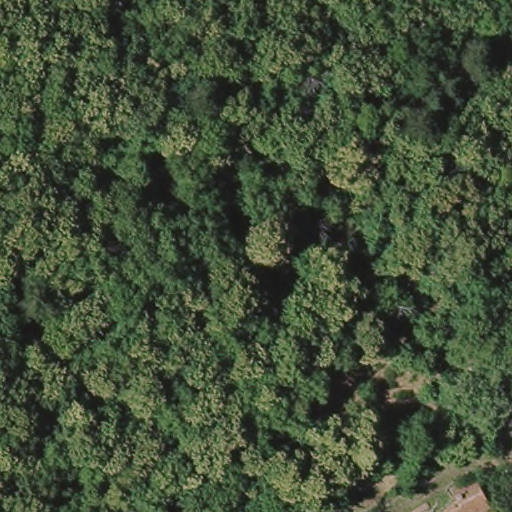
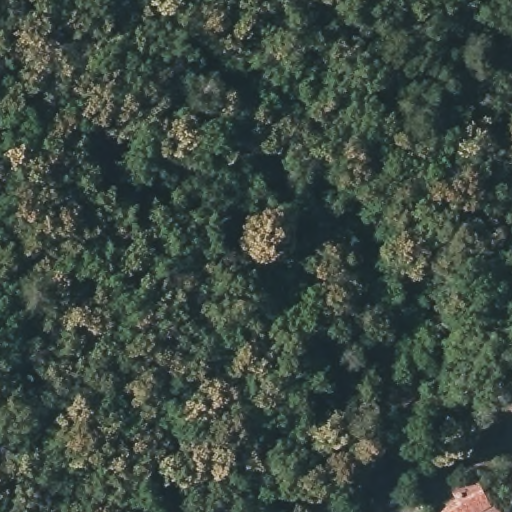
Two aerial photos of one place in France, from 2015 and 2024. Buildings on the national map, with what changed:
unchanged [(0,273),(0,247),(12,263),(0,273)]
unchanged [(486,506),(478,512),(457,512),(450,504),(444,496),(464,481),(483,502),(486,506)]
unchanged [(504,494),(512,502),(512,512),(483,512),(492,504),(504,494)]

